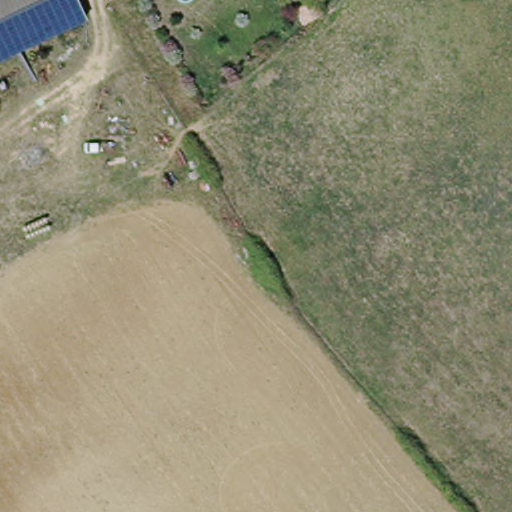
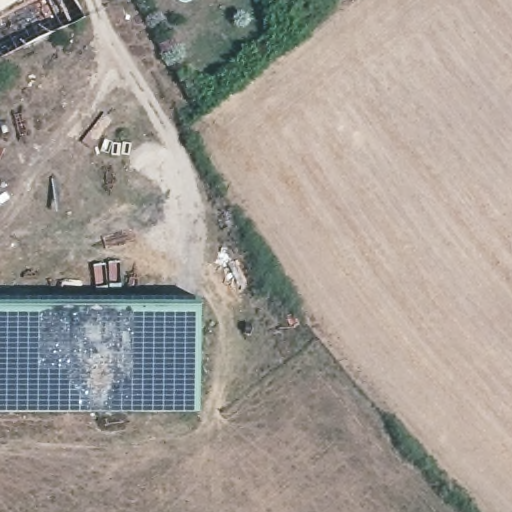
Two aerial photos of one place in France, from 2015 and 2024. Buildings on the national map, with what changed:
unchanged [(87,20),(0,60),(0,0),(78,0),(87,20)]
new [(0,413),(0,297),(199,297),(199,306),(198,413),(0,413)]

